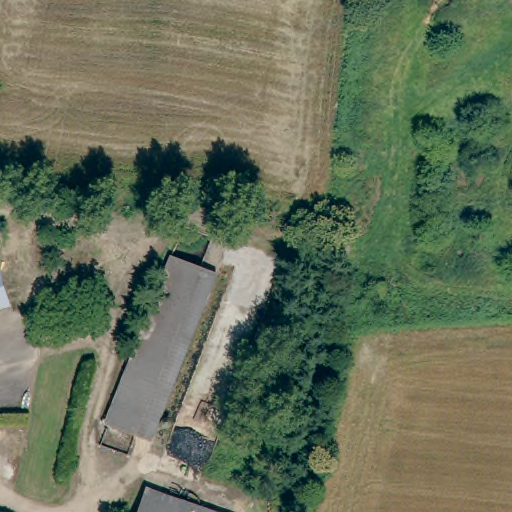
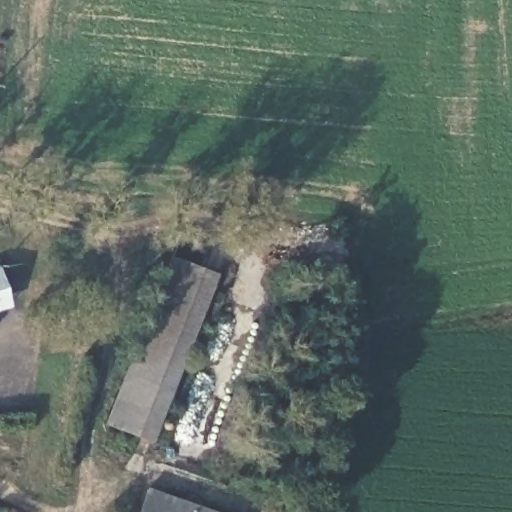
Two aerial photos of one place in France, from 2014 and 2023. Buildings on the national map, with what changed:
unchanged [(150,438),(109,422),(174,257),(215,273),(150,438)]
unchanged [(0,306),(0,287),(4,304),(0,306)]
unchanged [(147,490),(206,512),(140,512),(147,490)]

